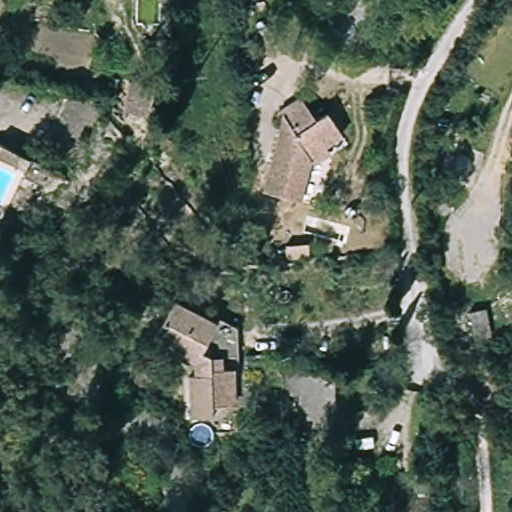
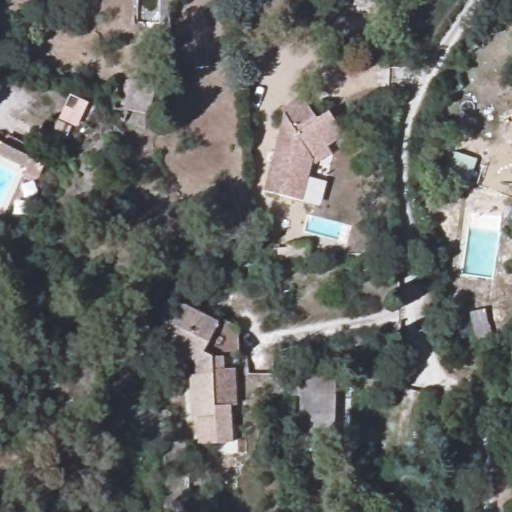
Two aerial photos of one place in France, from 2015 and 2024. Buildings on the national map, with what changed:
unchanged [(120,104),(124,91),(125,80),(150,85),(147,108),(120,105),(120,104)]
unchanged [(313,152),(302,197),(261,187),(280,110),(277,105),(298,90),(314,114),(327,105),(343,130),(327,141),(332,150),(317,159),(313,152)]
unchanged [(219,322),(221,319),(238,328),(240,359),(225,360),(226,371),(238,371),(240,408),(215,410),(216,419),(192,420),(189,377),(195,377),(194,365),(154,344),(175,300),(219,322)]
unchanged [(487,307),(493,335),(477,338),(471,310),(487,307)]
unchanged [(350,377),(343,452),(310,450),(315,398),(295,395),(293,372),(350,377)]

